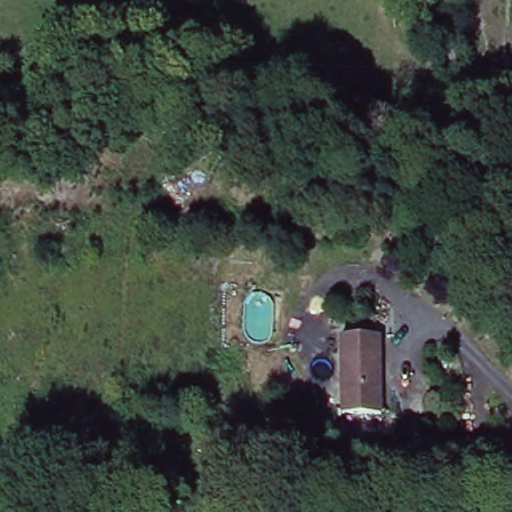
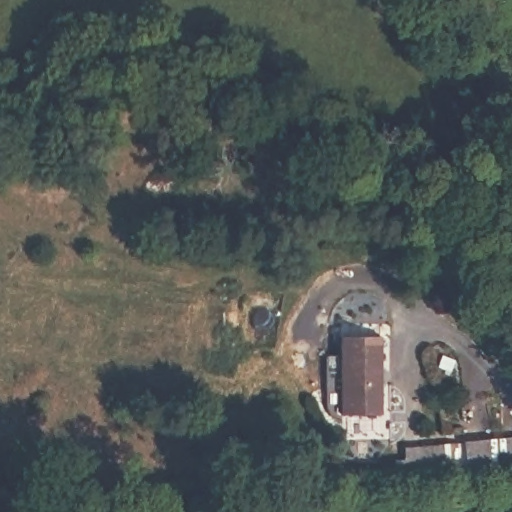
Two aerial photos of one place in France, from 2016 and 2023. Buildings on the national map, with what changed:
unchanged [(339,409),(338,330),(377,328),(378,409),(339,409)]
unchanged [(395,450),(402,449),(402,439),(492,434),(512,433),(512,462),(493,462),(396,465),(395,450)]

